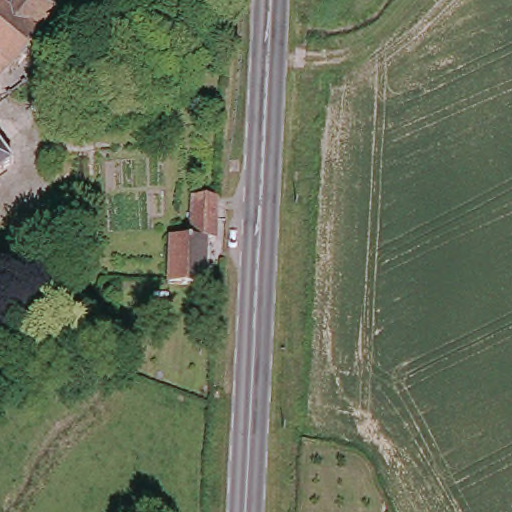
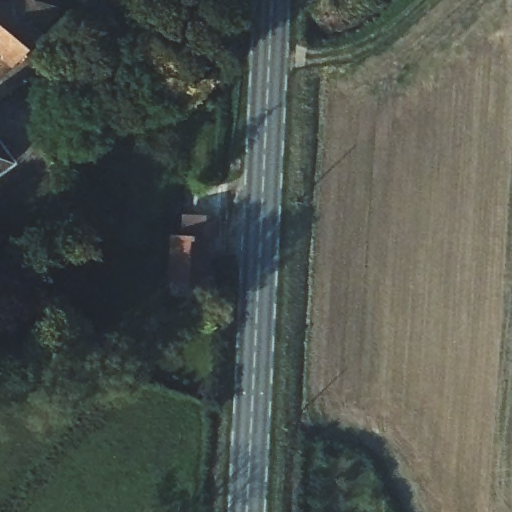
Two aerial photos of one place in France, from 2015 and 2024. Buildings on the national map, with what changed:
unchanged [(66,0),(11,64),(8,61),(0,70),(0,0),(65,0),(66,0)]
unchanged [(18,160),(0,172),(0,137),(18,160)]
unchanged [(190,237),(193,197),(219,197),(218,238),(206,237),(203,282),(168,282),(171,236),(190,237)]

